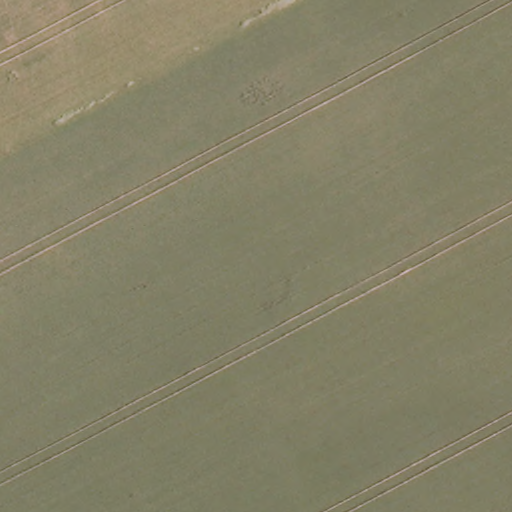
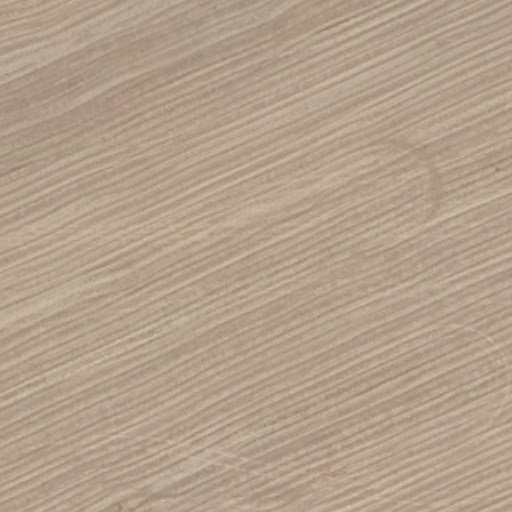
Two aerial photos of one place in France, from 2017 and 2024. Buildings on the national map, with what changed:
[]

